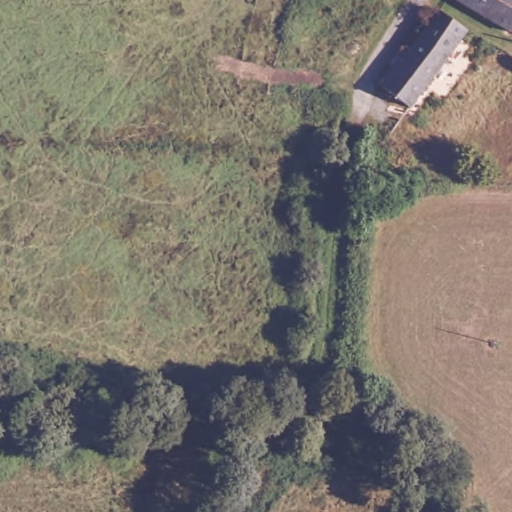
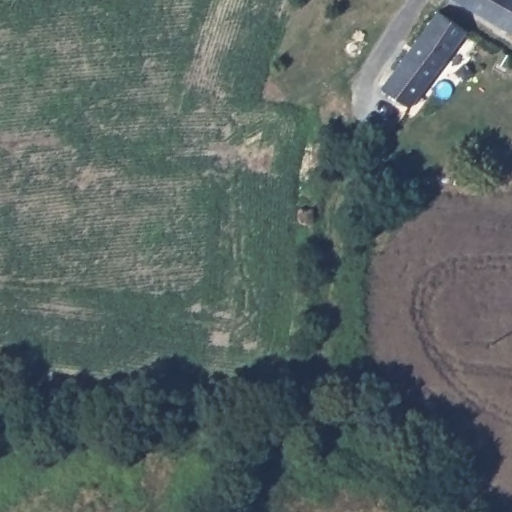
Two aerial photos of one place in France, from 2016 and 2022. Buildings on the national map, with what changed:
unchanged [(512,32),(455,0),(512,0),(512,32)]
unchanged [(438,11),(466,30),(410,107),(382,87),(438,11)]

